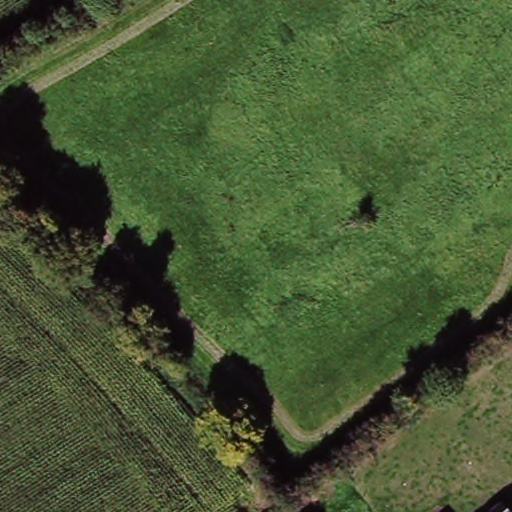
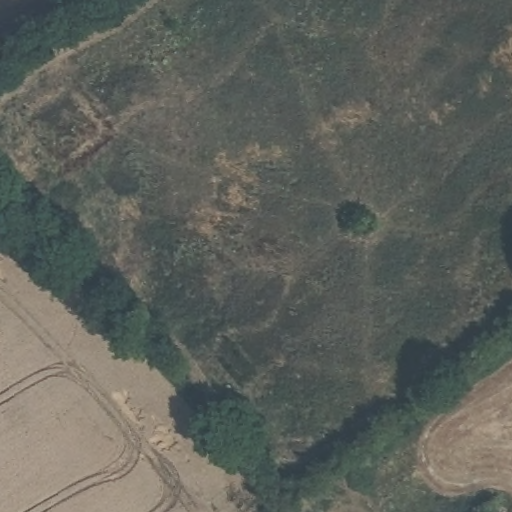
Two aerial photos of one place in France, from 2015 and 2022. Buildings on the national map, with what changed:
unchanged [(510,512),(489,512),(502,501),(510,512)]

